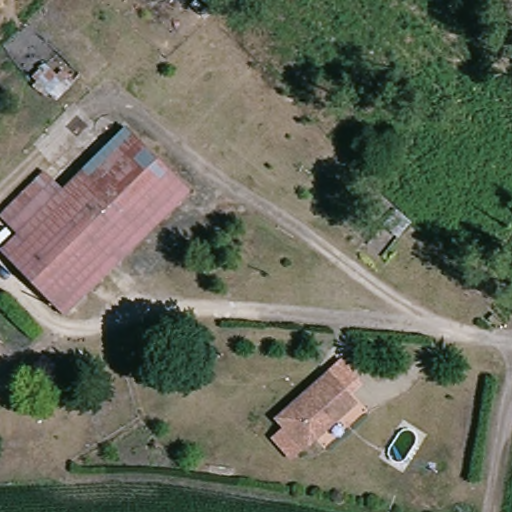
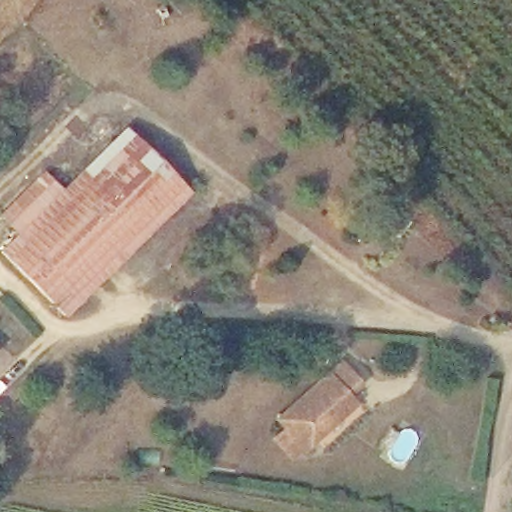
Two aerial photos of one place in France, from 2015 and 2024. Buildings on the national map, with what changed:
unchanged [(94,283),(73,304),(11,242),(27,226),(32,221),(68,186),(76,178),(132,124),(194,183),(180,197),(94,283)]
unchanged [(42,175),(50,167),(60,177),(68,186),(32,221),(27,226),(9,208),(42,175)]
unchanged [(354,401),(334,419),(301,447),(290,456),(272,436),(280,429),(283,426),(274,416),(327,370),(354,401)]

